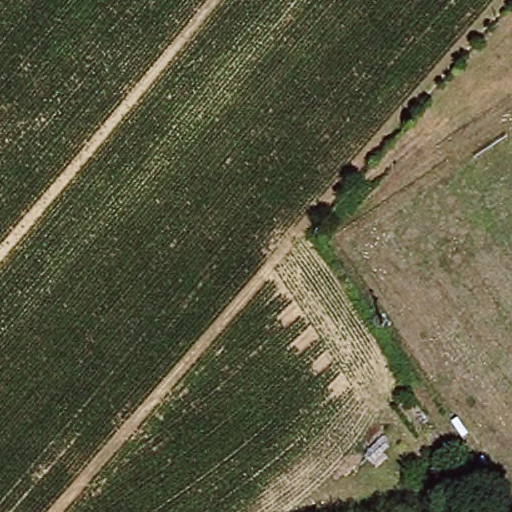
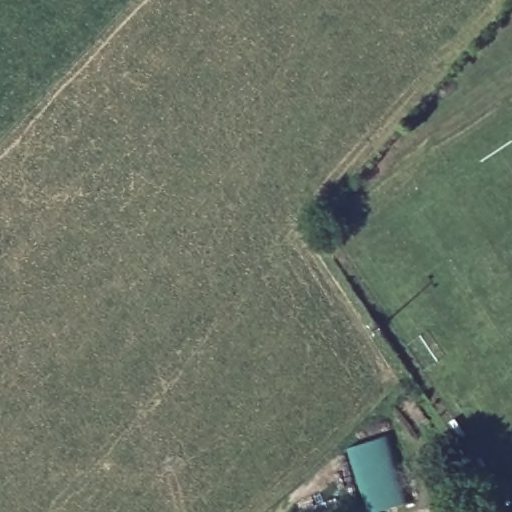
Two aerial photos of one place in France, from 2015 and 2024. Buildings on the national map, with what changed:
new [(387,435),(408,503),(378,512),(368,512),(346,448),(387,435)]

